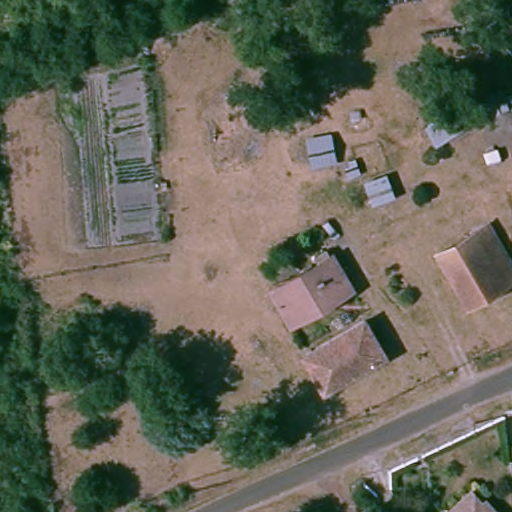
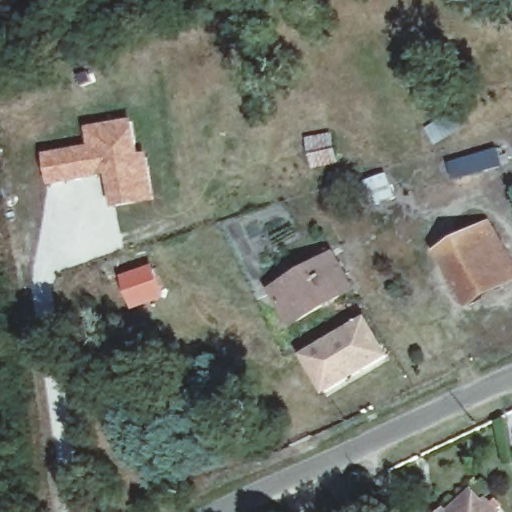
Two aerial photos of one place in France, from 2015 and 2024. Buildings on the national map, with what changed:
unchanged [(422,129),(494,81),(509,105),(436,150),(422,129)]
new [(88,144),(85,126),(132,117),(139,152),(147,150),(154,201),(113,209),(106,176),(47,186),(42,153),(88,144)]
demolished [(329,160),(335,184),(318,187),(311,164),(329,160)]
unchanged [(512,277),(512,280),(463,307),(436,255),(490,227),(512,277)]
unchanged [(330,260),(347,293),(285,325),(270,290),(330,260)]
new [(157,264),(165,297),(131,310),(120,275),(157,264)]
unchanged [(307,350),(364,320),(383,357),(324,389),(307,350)]
unchanged [(432,510),(437,505),(443,511),(465,490),(476,501),(481,496),(495,512),(430,512),(432,510)]

